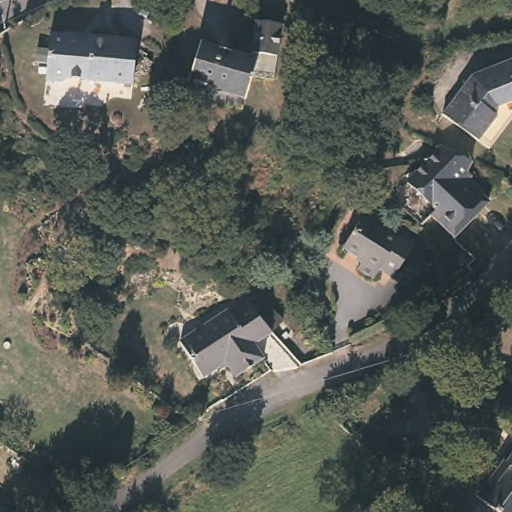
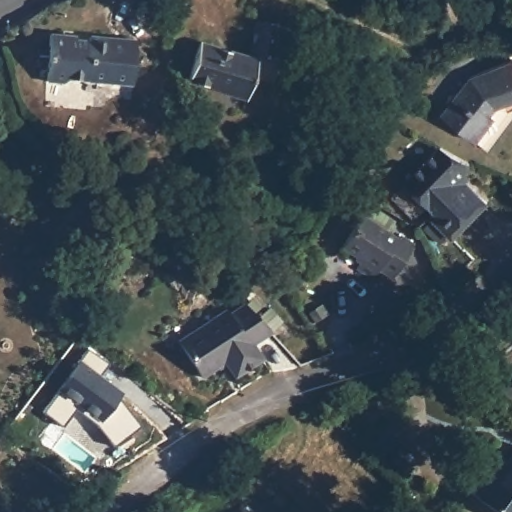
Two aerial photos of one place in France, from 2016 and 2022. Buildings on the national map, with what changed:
unchanged [(245,50),(256,19),(280,28),(269,58),(245,50)]
unchanged [(73,75),(67,79),(49,76),(54,30),(81,33),(81,36),(94,38),(95,38),(94,43),(107,60),(91,73),(90,78),(73,75)]
unchanged [(94,33),(140,39),(134,83),(90,78),(91,73),(107,60),(94,43),(95,38),(94,38),(94,33)]
unchanged [(217,49),(251,59),(240,96),(188,81),(200,44),(217,49)]
unchanged [(512,67),(512,98),(493,105),(486,113),(490,116),(471,139),(437,112),(465,74),(508,58),(512,67)]
unchanged [(466,173),(472,178),(467,184),(488,204),(455,239),(430,218),(435,212),(406,184),(442,145),(474,162),(466,173)]
unchanged [(399,234),(413,243),(392,277),(379,268),(374,276),(358,267),(362,259),(345,248),(342,252),(339,250),(362,215),(366,217),(373,206),(388,215),(381,227),(398,236),(399,234)]
unchanged [(274,325),(256,338),(266,353),(239,370),(230,356),(207,372),(184,335),(233,304),(235,307),(250,297),(274,325)]
new [(114,447),(96,422),(75,410),(63,427),(41,412),(80,364),(77,362),(88,347),(110,363),(100,376),(121,393),(118,396),(142,425),(114,447)]
unchanged [(482,492),(495,474),(499,477),(511,460),(511,457),(512,456),(512,512),(511,512),(482,492)]
unchanged [(0,504),(15,512),(0,512),(0,504)]

